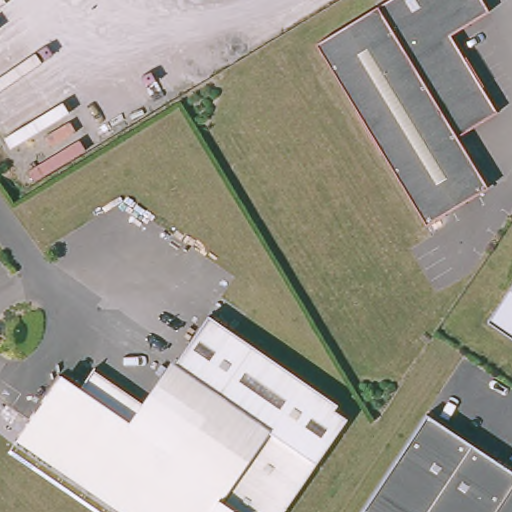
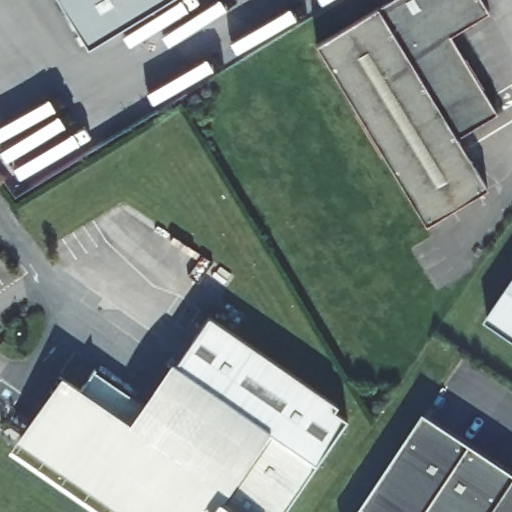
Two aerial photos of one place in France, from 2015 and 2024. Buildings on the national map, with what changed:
new [(87,46),(59,0),(167,0),(87,46)]
unchanged [(381,0),(485,0),(489,7),(451,31),(497,108),(457,132),(487,183),(426,220),(317,39),(381,0)]
unchanged [(486,323),(512,285),(512,340),(486,323)]
unchanged [(324,419),(337,428),(278,512),(98,512),(6,448),(49,385),(70,400),(83,380),(136,416),(177,356),(199,325),(327,414),(324,419)]
unchanged [(512,473),(512,512),(361,512),(426,416),(512,473)]

